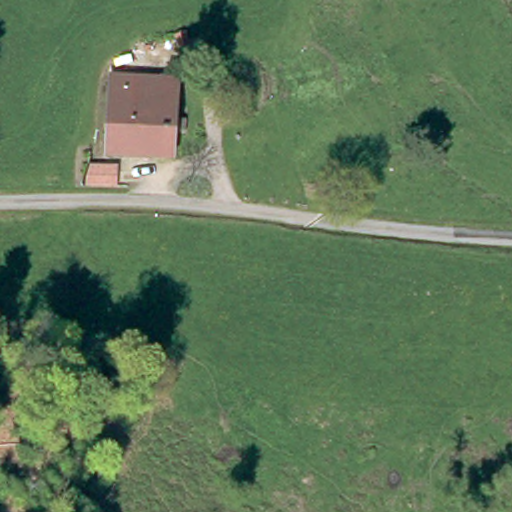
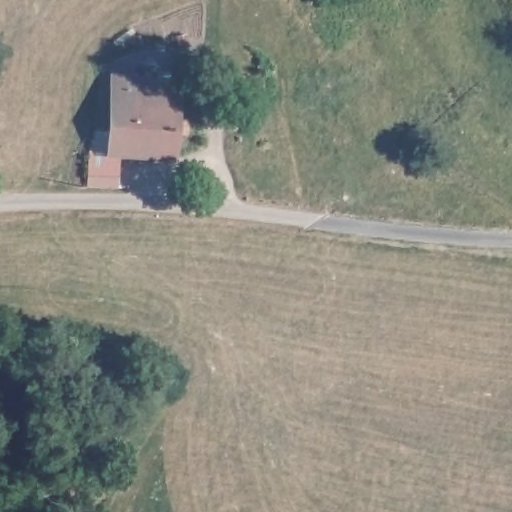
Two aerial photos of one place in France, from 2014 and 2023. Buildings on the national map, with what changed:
unchanged [(174,72),(174,146),(109,146),(109,73),(174,72)]

